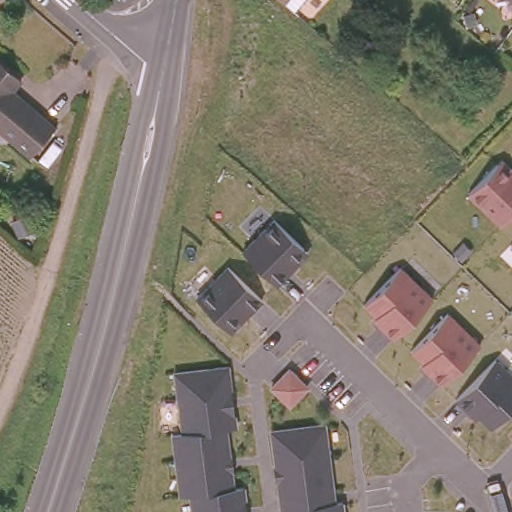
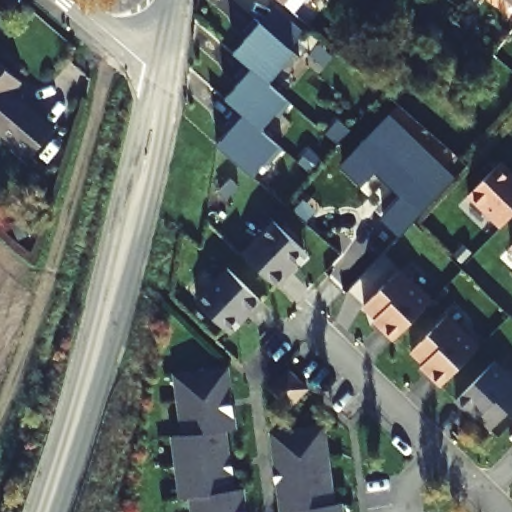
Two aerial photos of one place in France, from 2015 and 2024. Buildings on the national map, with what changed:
unchanged [(280,0),(293,0),(287,6),(280,0)]
new [(259,21),(295,52),(270,80),(234,50),(259,21)]
unchanged [(14,90),(54,125),(28,155),(0,131),(0,59),(23,80),(14,90)]
new [(291,101),(280,115),(275,110),(260,127),(225,96),(240,80),(236,76),(247,64),(291,101)]
new [(284,148),(270,163),(265,159),(252,175),(217,144),(230,128),(225,124),(239,109),(284,148)]
new [(456,176),(398,235),(379,216),(400,195),(376,171),(362,187),(340,165),(390,112),(456,176)]
unchanged [(512,168),(512,215),(500,227),(467,195),(503,160),(512,168)]
unchanged [(309,253),(277,285),(242,252),(274,219),(309,253)]
unchanged [(509,247),(512,244),(512,250),(509,247)]
unchanged [(264,302),(231,333),(195,298),(227,266),(264,302)]
unchanged [(434,300),(394,340),(374,321),(377,318),(363,305),(402,267),(434,300)]
unchanged [(481,345),(442,385),(422,365),(423,364),(411,352),(449,312),(481,345)]
unchanged [(455,401),(497,358),(512,374),(512,407),(492,428),(480,417),(475,420),(455,401)]
unchanged [(228,369),(238,437),(232,438),(237,491),(245,490),(248,512),(191,512),(189,497),(177,499),(171,437),(181,438),(175,373),(228,369)]
unchanged [(334,505),(343,506),(344,512),(281,512),(275,432),(325,427),(334,505)]

